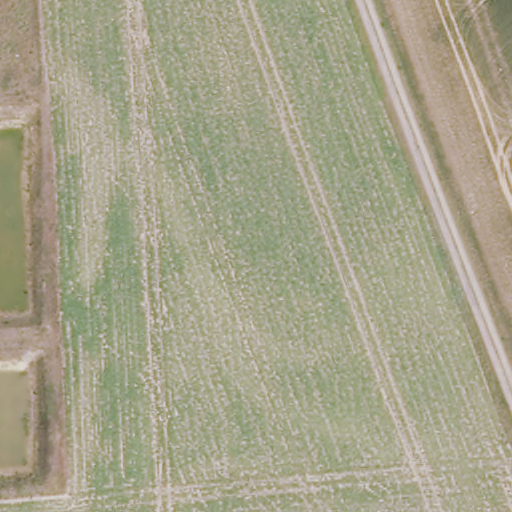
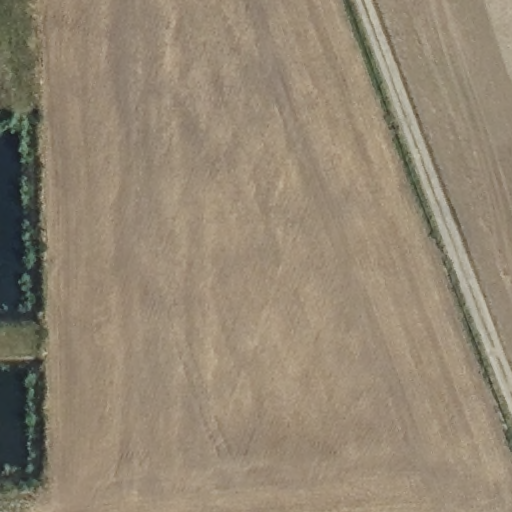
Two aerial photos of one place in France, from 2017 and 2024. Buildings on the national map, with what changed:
[]

